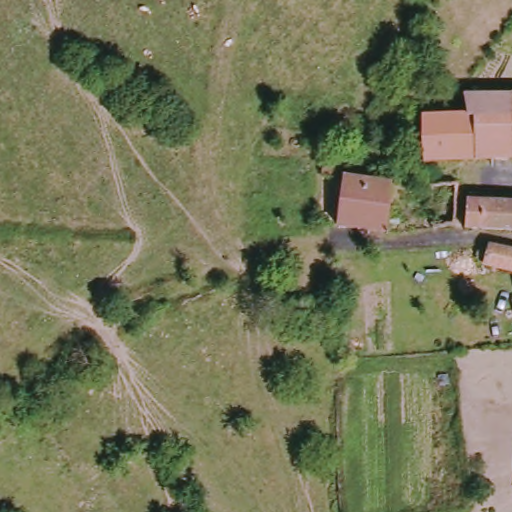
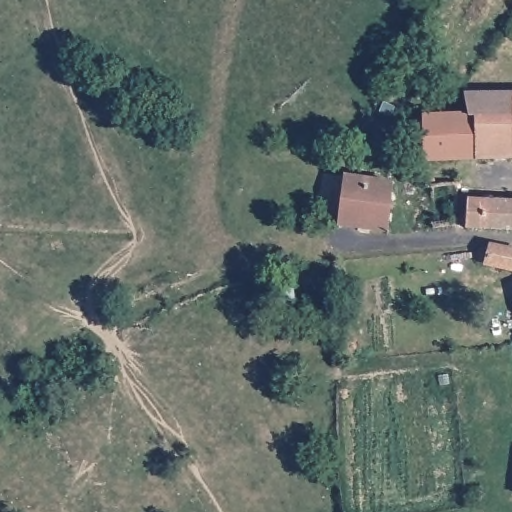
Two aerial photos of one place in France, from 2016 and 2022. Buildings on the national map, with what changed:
unchanged [(465,96),(512,94),(512,156),(467,158),(465,113),(465,96)]
unchanged [(417,114),(437,113),(465,113),(467,158),(446,159),(447,181),(416,181),(416,160),(417,114)]
unchanged [(345,174),(386,178),(382,229),(338,226),(345,174)]
unchanged [(512,201),(512,229),(462,227),(466,198),(512,201)]
unchanged [(497,245),(512,249),(512,270),(491,265),(497,245)]

